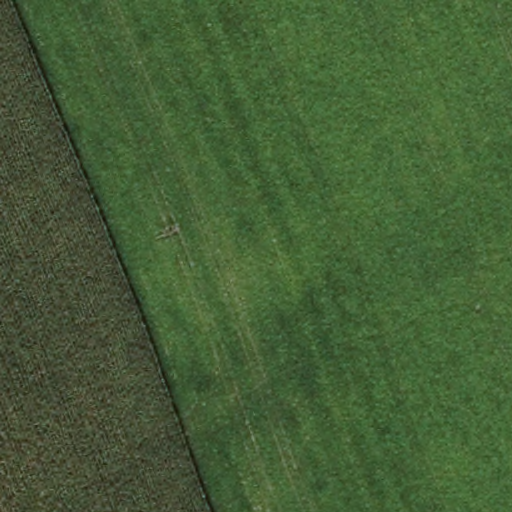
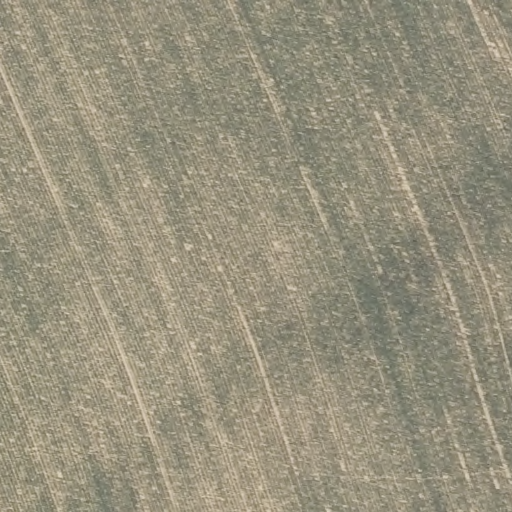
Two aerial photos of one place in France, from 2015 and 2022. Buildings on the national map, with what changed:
[]

